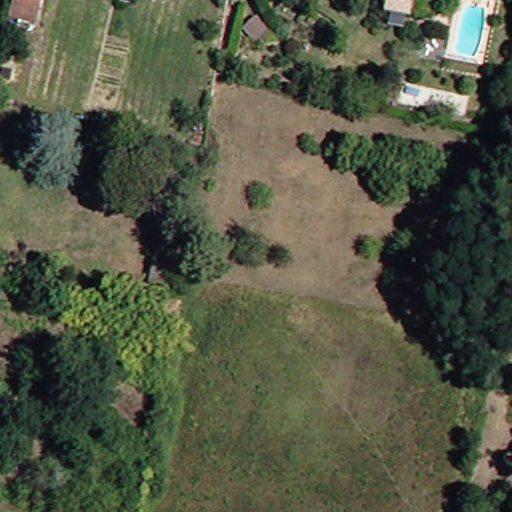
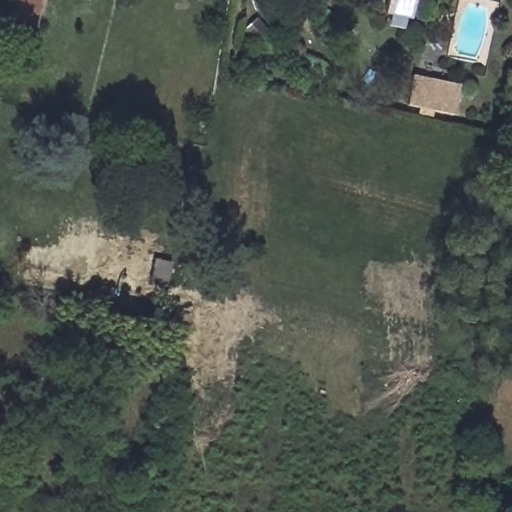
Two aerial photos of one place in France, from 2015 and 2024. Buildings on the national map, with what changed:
unchanged [(12,0),(41,0),(36,22),(9,15),(12,0)]
unchanged [(415,17),(389,12),(391,0),(418,0),(415,17)]
new [(406,107),(413,75),(461,86),(455,117),(406,107)]

